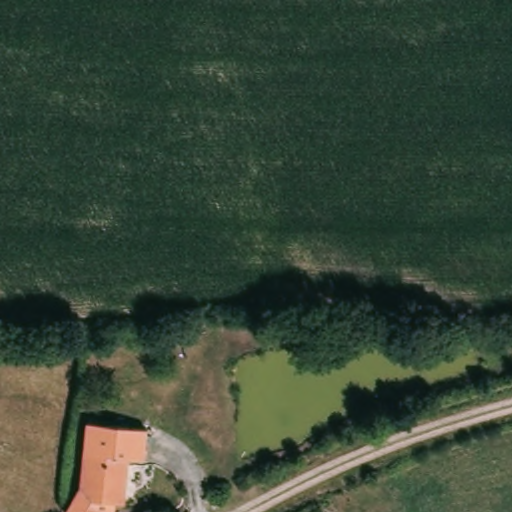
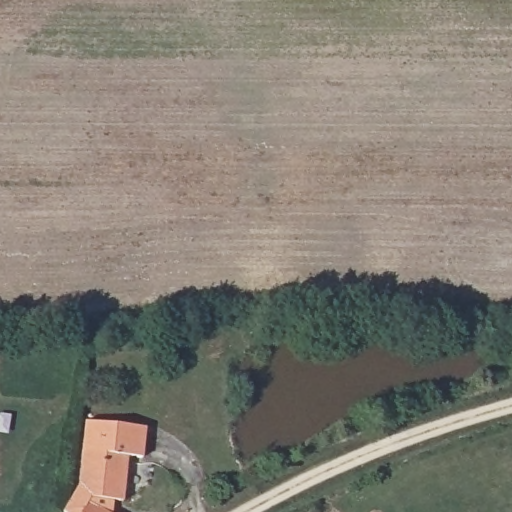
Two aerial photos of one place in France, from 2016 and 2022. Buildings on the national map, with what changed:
unchanged [(127,503),(119,503),(117,512),(69,512),(82,486),(89,422),(148,428),(145,459),(132,458),(127,503)]

